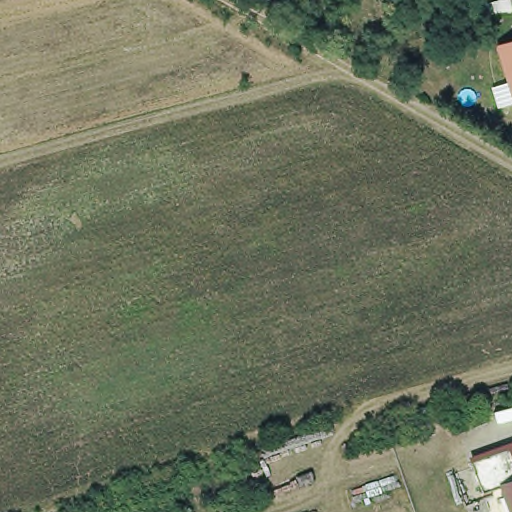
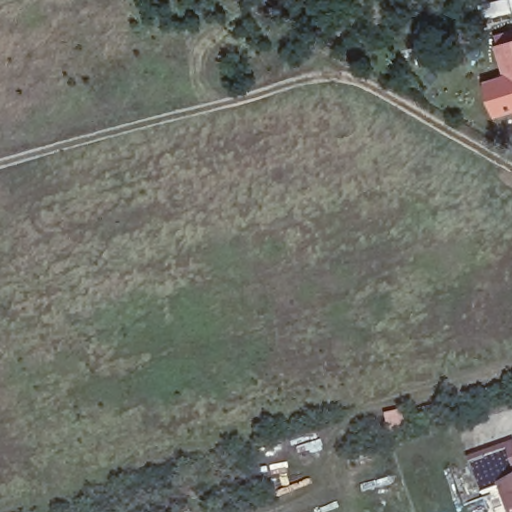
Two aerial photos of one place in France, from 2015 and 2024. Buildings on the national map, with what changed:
unchanged [(512,45),(512,89),(500,50),(512,45)]
unchanged [(485,491),(474,460),(512,446),(512,503),(505,483),(485,491)]

